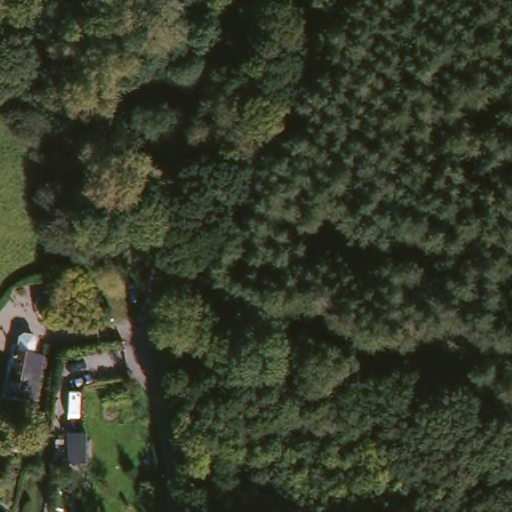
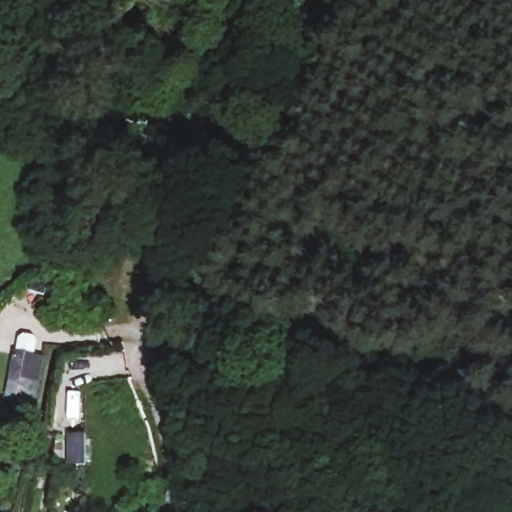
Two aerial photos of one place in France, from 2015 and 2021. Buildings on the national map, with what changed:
unchanged [(12,353),(14,353),(14,340),(18,336),(26,336),(30,340),(29,353),(36,354),(38,368),(38,376),(36,398),(11,399),(12,353)]
unchanged [(69,462),(72,432),(89,433),(86,464),(69,462)]

